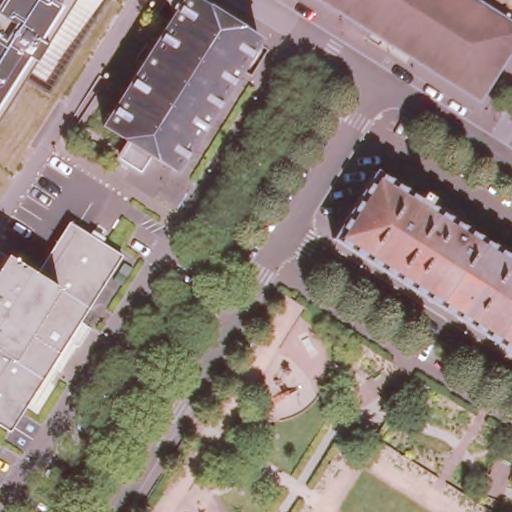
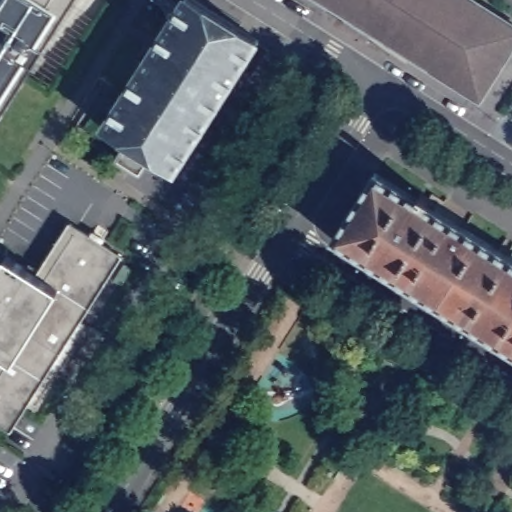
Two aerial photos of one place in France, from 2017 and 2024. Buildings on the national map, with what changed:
unchanged [(82,0),(6,119),(0,115),(0,0),(82,0)]
unchanged [(126,130),(103,115),(176,0),(210,0),(258,30),(175,161),(153,147),(141,165),(115,149),(126,130)]
unchanged [(327,0),(478,0),(512,22),(512,44),(478,95),(327,0)]
unchanged [(382,168),(486,234),(512,250),(512,345),(339,235),(382,168)]
unchanged [(5,247),(35,264),(67,213),(122,247),(9,424),(0,419),(0,256),(5,247)]

